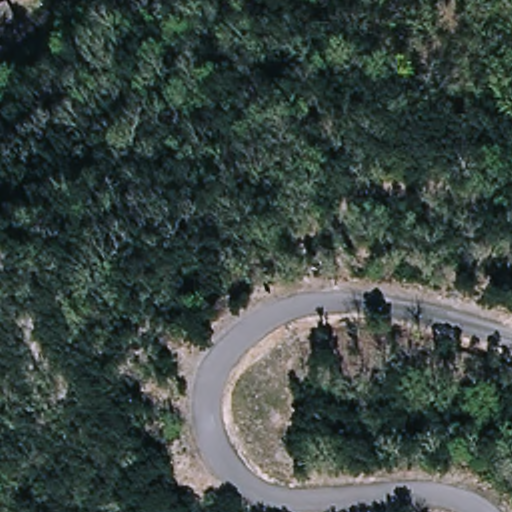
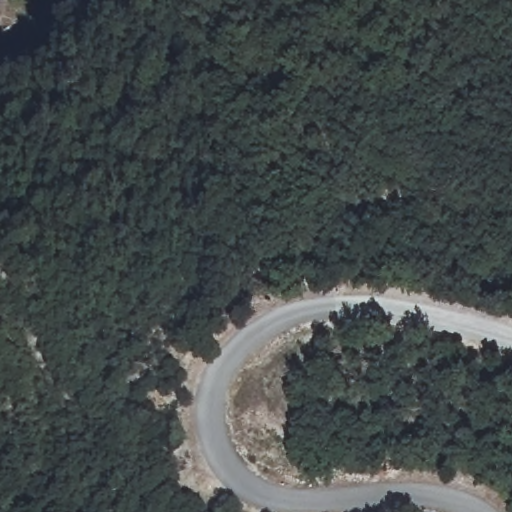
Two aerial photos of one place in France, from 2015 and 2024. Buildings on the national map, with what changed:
unchanged [(0,29),(0,0),(12,22),(0,29)]

